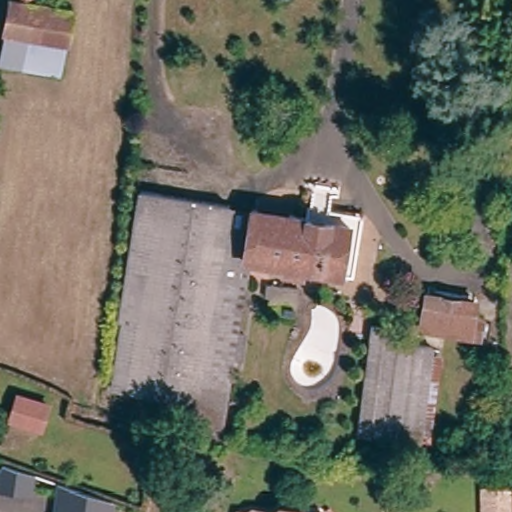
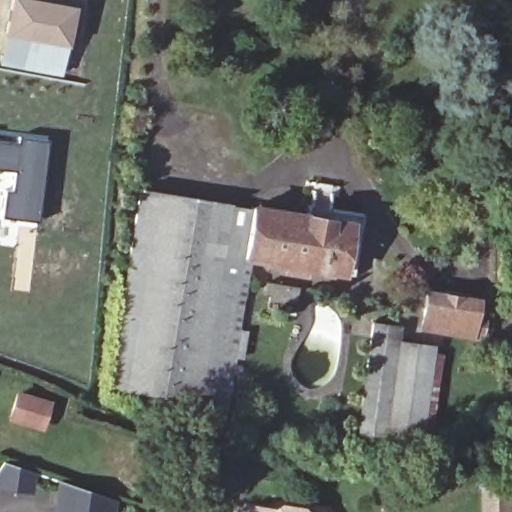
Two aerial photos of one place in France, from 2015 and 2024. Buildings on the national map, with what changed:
unchanged [(31,1),(66,8),(54,72),(0,60),(0,44),(8,0),(31,0),(31,1)]
new [(38,221),(2,216),(5,188),(9,188),(12,171),(0,170),(0,130),(49,138),(38,221)]
unchanged [(470,182),(494,181),(496,224),(472,225),(470,182)]
unchanged [(119,315),(140,189),(252,207),(245,257),(219,425),(186,419),(187,412),(178,411),(179,398),(110,385),(123,316),(119,315)]
unchanged [(252,207),(348,222),(340,271),(245,257),(252,207)]
unchanged [(268,280),(299,287),(294,312),(263,306),(268,280)]
unchanged [(421,291),(472,299),(470,315),(479,317),(476,336),(415,325),(421,291)]
unchanged [(368,323),(393,326),(391,340),(428,346),(415,438),(355,429),(368,323)]
unchanged [(18,394),(47,406),(37,430),(8,417),(18,394)]
unchanged [(0,468),(0,455),(0,454),(32,466),(28,478),(0,468)]
unchanged [(114,498),(113,512),(59,512),(62,479),(114,498)]
unchanged [(494,495),(495,512),(482,512),(481,496),(494,495)]
unchanged [(270,510),(276,505),(296,508),(299,512),(244,512),(249,508),(270,510)]
unchanged [(319,512),(317,512),(318,511),(319,512)]

